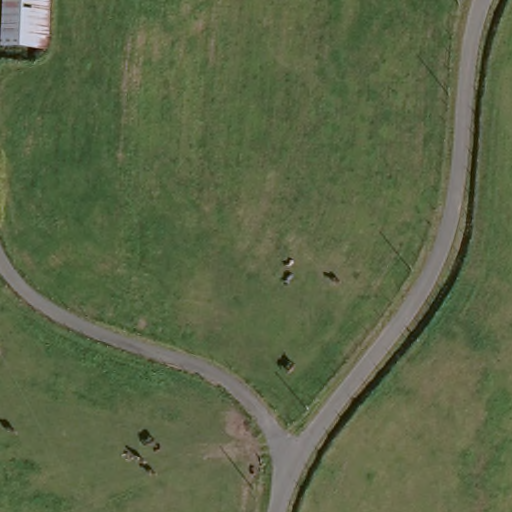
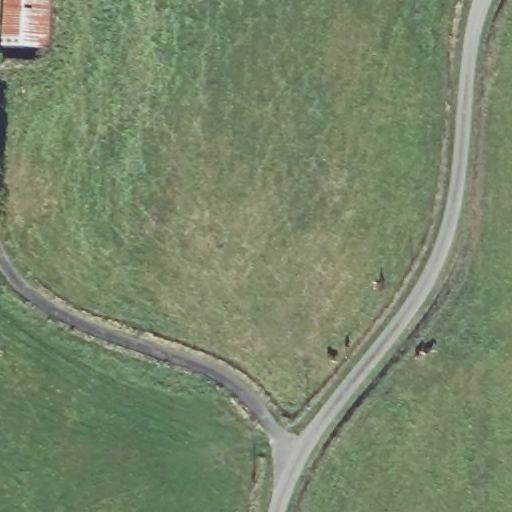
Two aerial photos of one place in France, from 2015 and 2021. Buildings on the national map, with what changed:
unchanged [(3,45),(7,0),(40,0),(36,46),(3,45)]

